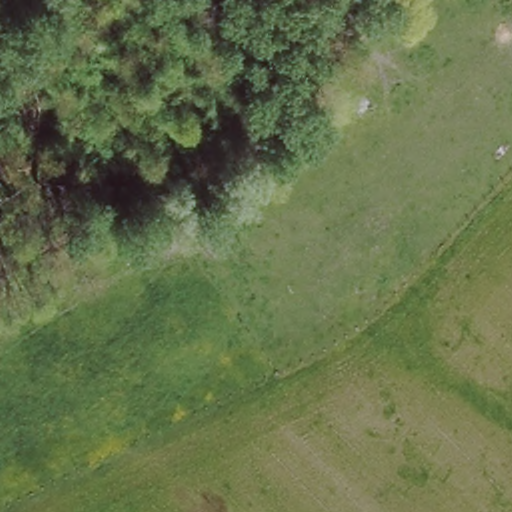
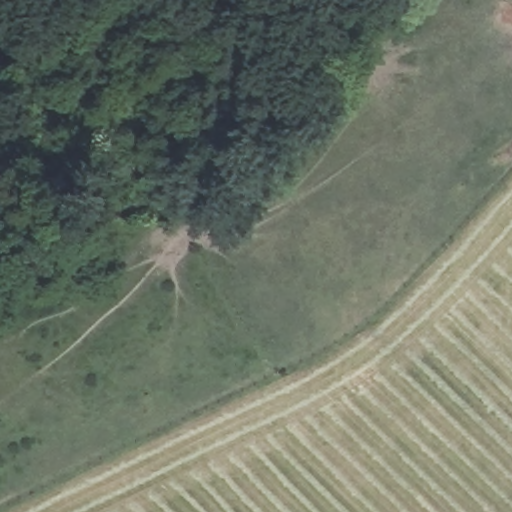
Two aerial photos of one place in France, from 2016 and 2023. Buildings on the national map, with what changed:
unchanged [(11,131),(1,142),(0,141),(0,120),(11,131)]

